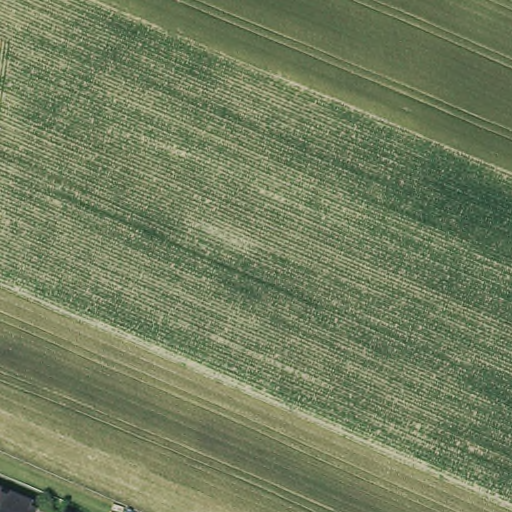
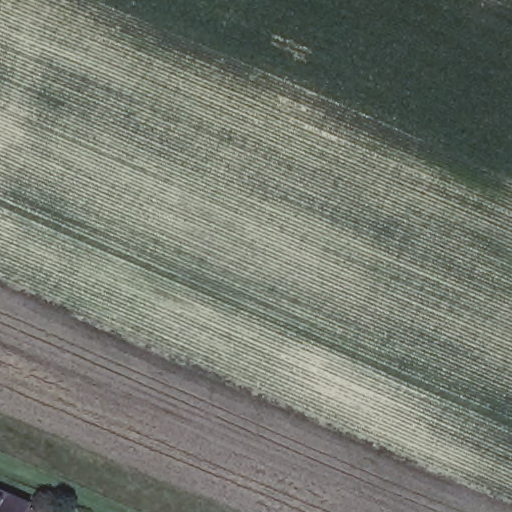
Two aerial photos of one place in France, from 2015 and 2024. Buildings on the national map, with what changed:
unchanged [(29,512),(0,512),(0,485),(35,500),(29,512)]

